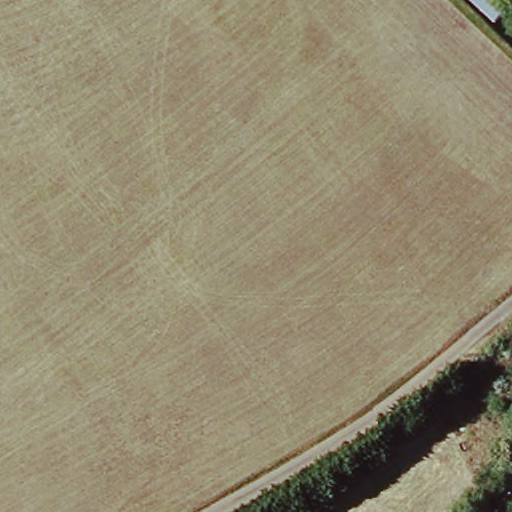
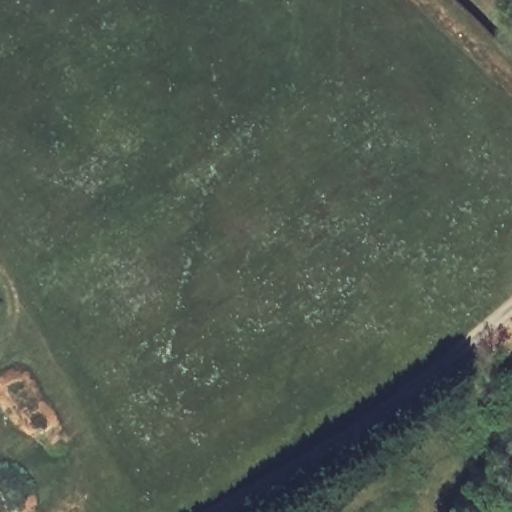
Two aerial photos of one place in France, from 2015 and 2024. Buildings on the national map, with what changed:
unchanged [(492,29),(462,1),(464,0),(494,0),(507,11),(492,29)]

